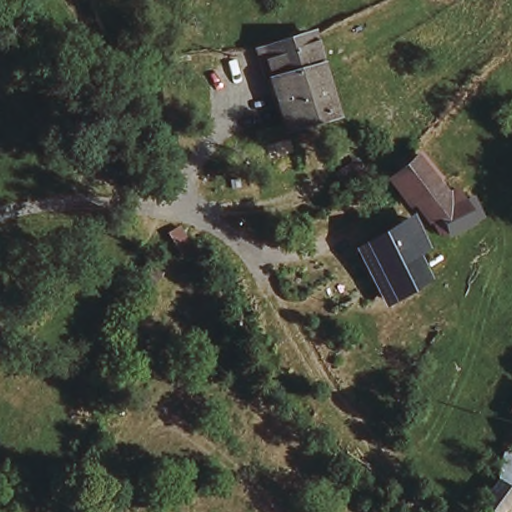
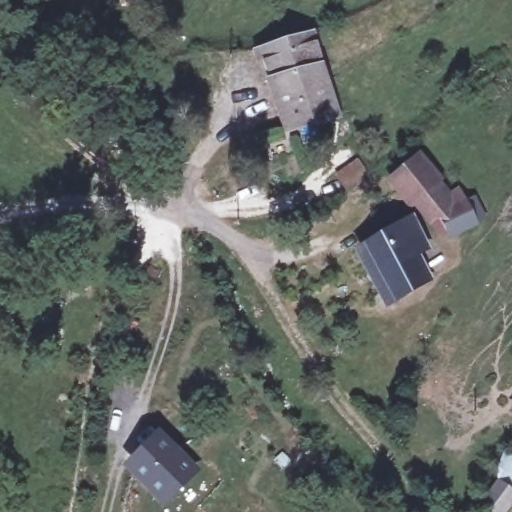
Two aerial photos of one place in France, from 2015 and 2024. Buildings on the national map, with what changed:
unchanged [(285,53),(309,44),(334,109),(290,126),(265,58),(285,53)]
unchanged [(434,180),(407,198),(389,174),(417,156),(434,180)]
unchanged [(454,188),(461,197),(469,193),(477,204),(467,212),(471,217),(448,230),(431,202),(454,188)]
unchanged [(392,226),(419,270),(381,293),(355,248),(392,226)]
unchanged [(178,230),(194,260),(181,270),(163,243),(178,230)]
unchanged [(495,417),(512,394),(512,426),(511,427),(495,417)]
new [(161,428),(200,469),(164,507),(123,465),(161,428)]
unchanged [(497,485),(504,469),(508,462),(512,464),(512,512),(490,512),(487,509),(497,485)]

